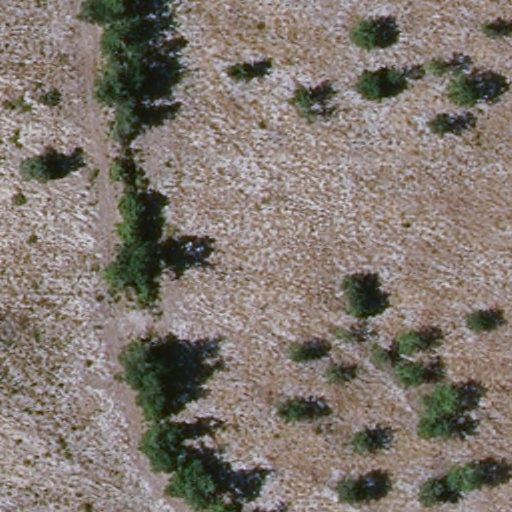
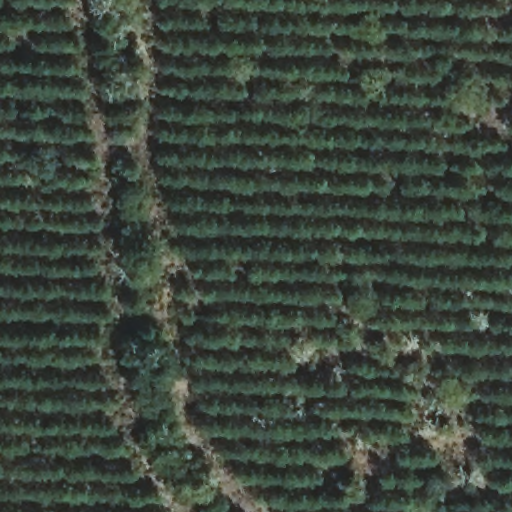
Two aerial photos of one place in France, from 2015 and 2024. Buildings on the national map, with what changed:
[]

